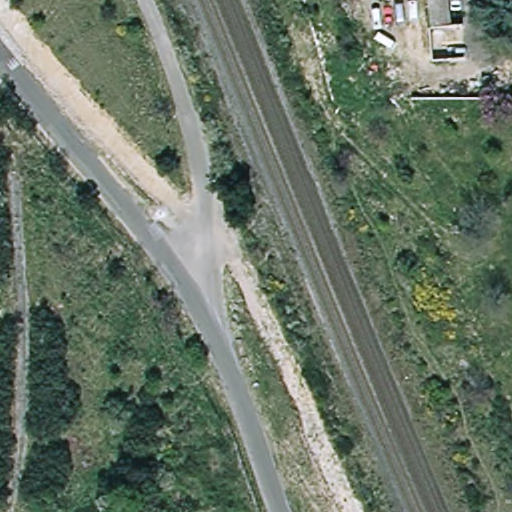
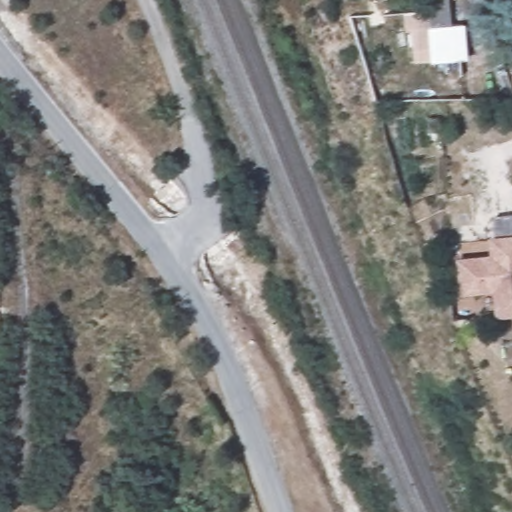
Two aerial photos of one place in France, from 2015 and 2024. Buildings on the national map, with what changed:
unchanged [(425,31),(422,0),(443,0),(446,29),(425,31)]
new [(425,31),(446,29),(464,27),(467,59),(414,62),(411,32),(405,32),(403,14),(423,12),(425,31)]
new [(488,256),(487,239),(512,237),(512,318),(493,320),(490,294),(457,296),(454,259),(488,256)]

